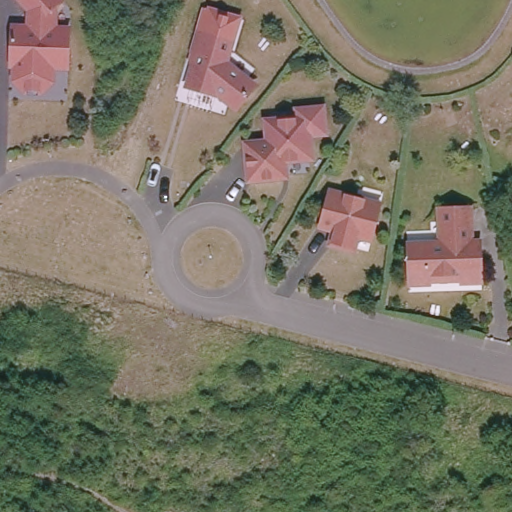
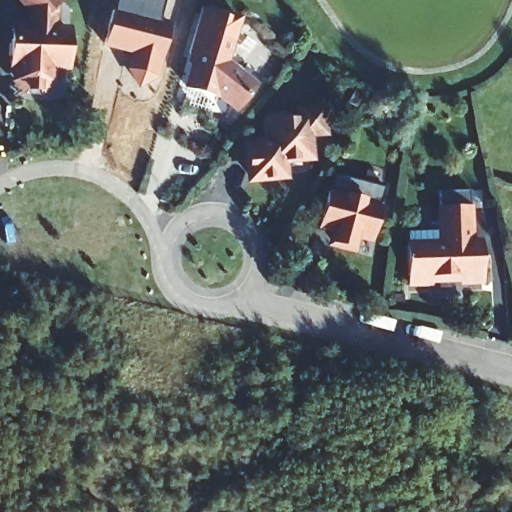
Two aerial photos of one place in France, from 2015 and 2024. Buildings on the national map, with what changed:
unchanged [(31,11),(21,0),(62,0),(57,5),(56,31),(70,32),(70,64),(53,64),(52,81),(42,90),(28,90),(19,80),(20,63),(12,63),(13,39),(13,30),(30,30),(31,11)]
new [(103,47),(115,0),(165,0),(165,20),(172,22),(157,77),(126,70),(130,54),(103,47)]
unchanged [(237,37),(232,58),(252,74),(255,87),(247,97),(234,98),(222,89),(220,91),(193,83),(202,52),(195,49),(202,27),(237,37)]
unchanged [(328,107),(330,134),(312,136),(315,157),(288,160),(290,176),(257,179),(254,146),(277,145),(275,126),(303,123),(302,111),(328,107)]
unchanged [(385,197),(377,233),(360,229),(357,240),(338,236),(342,218),(327,214),(334,184),(385,197)]
unchanged [(487,253),(487,281),(467,282),(467,277),(435,278),(436,283),(415,283),(413,242),(447,241),(445,206),(477,205),(477,241),(486,241),(487,253)]

